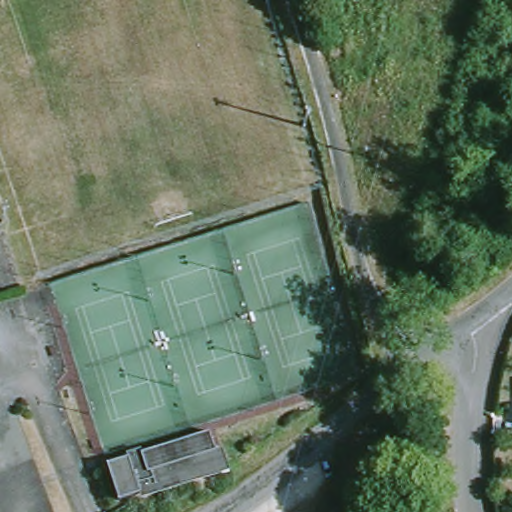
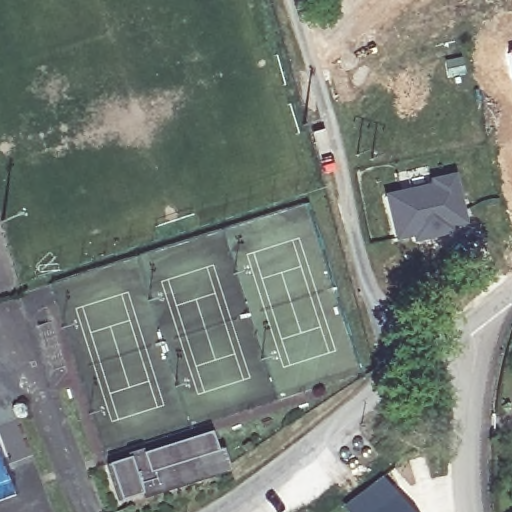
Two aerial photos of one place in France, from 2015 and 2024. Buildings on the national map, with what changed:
new [(512,69),(507,51),(512,49),(512,69)]
new [(435,185),(434,180),(456,176),(467,224),(453,227),(454,232),(416,240),(415,235),(398,239),(388,196),(435,185)]
unchanged [(146,503),(144,498),(123,505),(111,468),(220,432),(232,470),(234,475),(146,503)]
new [(382,474),(410,512),(345,512),(340,506),(382,474)]

